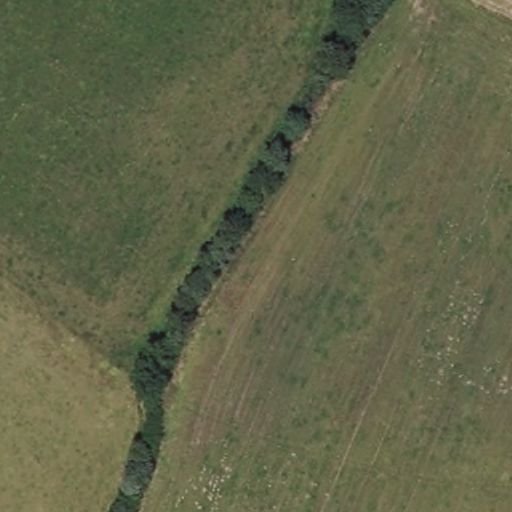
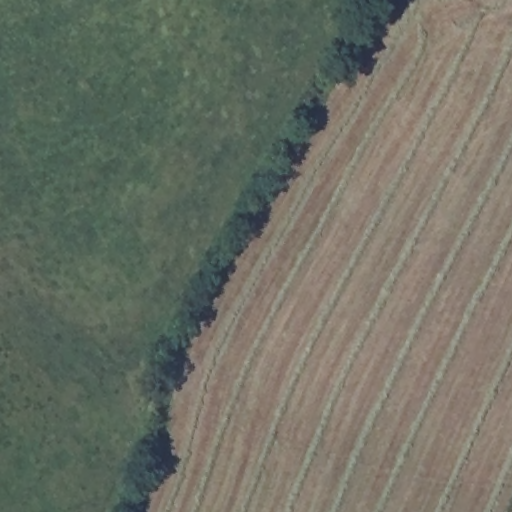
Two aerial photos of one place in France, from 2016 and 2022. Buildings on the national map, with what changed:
[]

